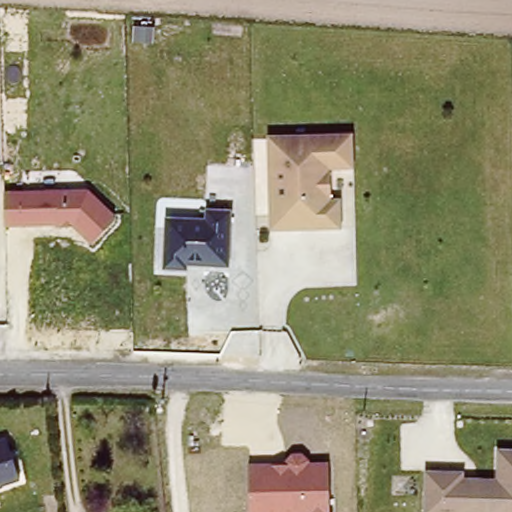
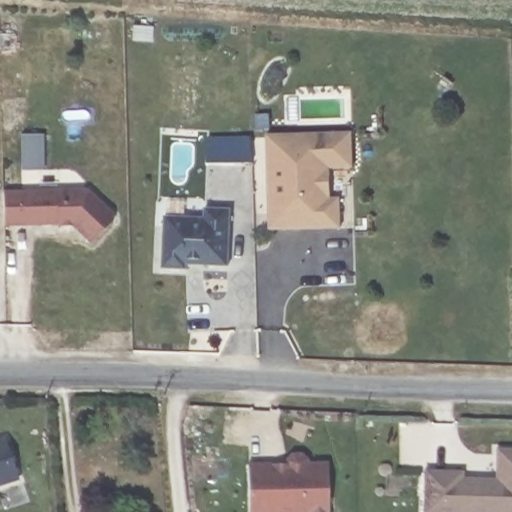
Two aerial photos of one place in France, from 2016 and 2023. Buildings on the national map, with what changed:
unchanged [(354,129),(354,168),(334,169),(333,196),(341,195),(341,228),(269,232),(265,134),(354,129)]
unchanged [(82,186),(116,215),(93,240),(70,220),(7,221),(5,185),(82,186)]
unchanged [(203,215),(205,209),(231,210),(231,264),(187,264),(188,269),(163,267),(164,215),(203,215)]
unchanged [(0,483),(0,439),(3,438),(18,478),(0,483)]
unchanged [(424,512),(426,467),(467,467),(466,476),(498,476),(499,447),(512,448),(512,512),(424,512)]
unchanged [(251,512),(248,463),(325,460),(330,512),(251,512)]

